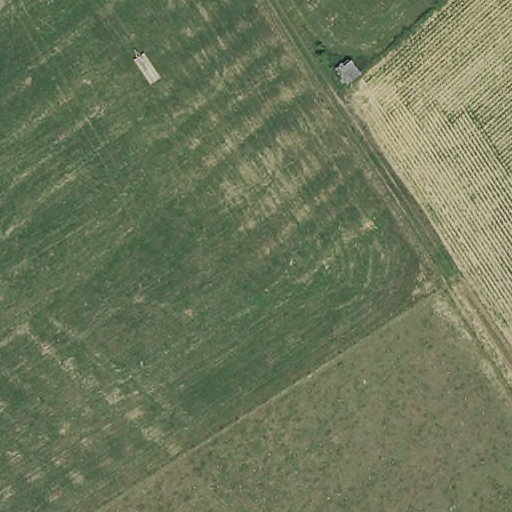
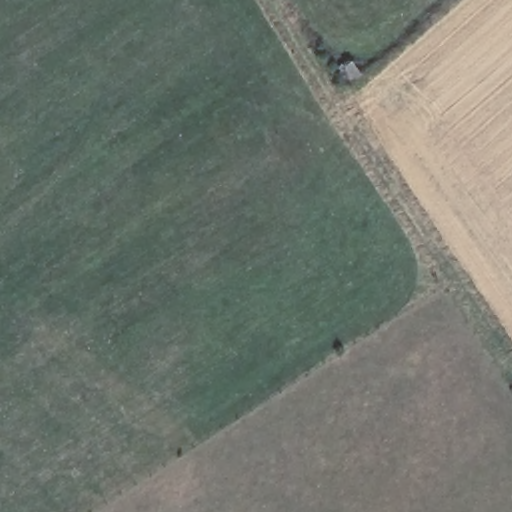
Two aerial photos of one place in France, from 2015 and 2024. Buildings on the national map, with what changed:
unchanged [(351,54),(366,74),(347,89),(329,72),(351,54)]

